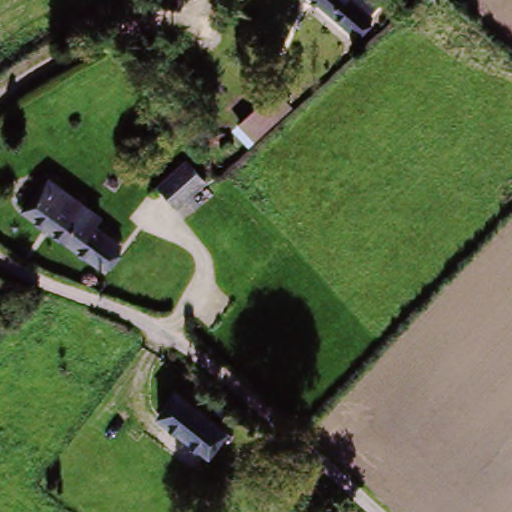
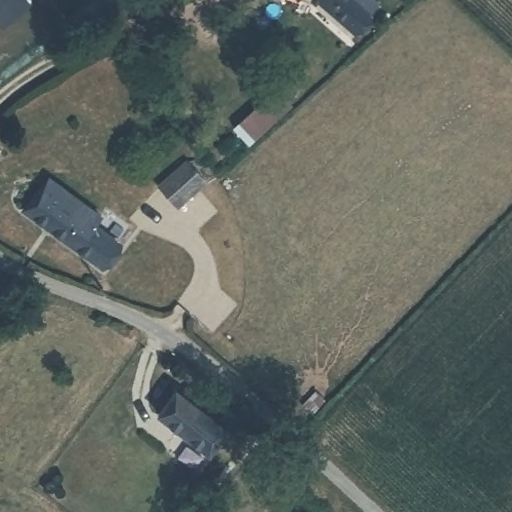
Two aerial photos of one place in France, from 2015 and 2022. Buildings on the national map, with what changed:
new [(0,24),(0,0),(25,0),(28,4),(1,26),(0,24)]
unchanged [(163,3),(161,0),(168,0),(163,3)]
unchanged [(366,12),(349,30),(314,0),(352,0),(366,12)]
unchanged [(256,112),(270,126),(246,147),(233,132),(256,112)]
unchanged [(186,165),(204,185),(175,210),(158,190),(186,165)]
unchanged [(50,179),(82,202),(101,217),(94,225),(119,245),(118,247),(108,261),(103,271),(23,214),(50,179)]
unchanged [(231,432),(213,456),(162,418),(179,395),(231,432)]

